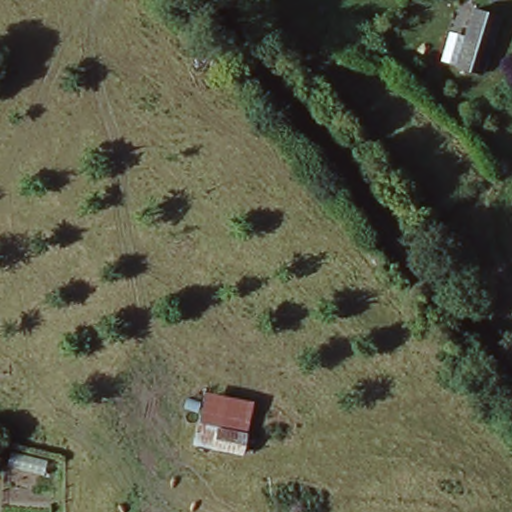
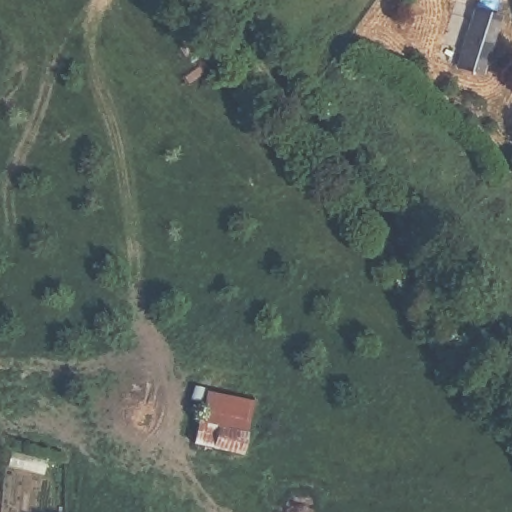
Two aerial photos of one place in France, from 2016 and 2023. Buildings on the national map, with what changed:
unchanged [(496,18),(479,77),(449,69),(466,11),(496,18)]
unchanged [(209,388),(254,398),(246,438),(194,424),(209,388)]
unchanged [(246,438),(238,461),(186,448),(194,424),(246,438)]

